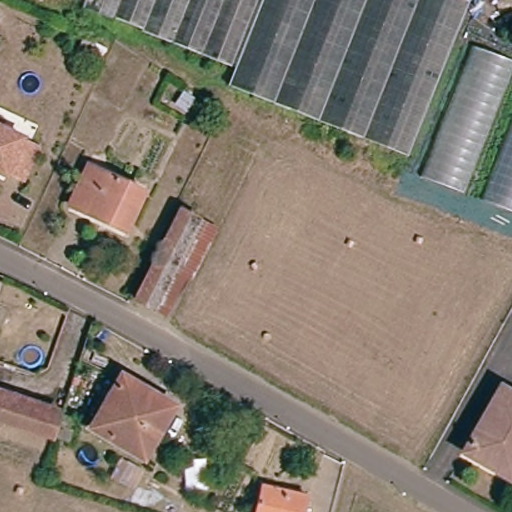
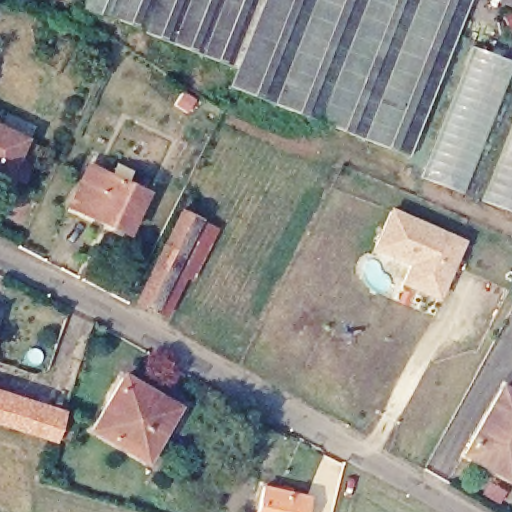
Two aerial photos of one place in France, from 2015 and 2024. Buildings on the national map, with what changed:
unchanged [(410,156),(397,151),(242,87),(233,83),(242,64),(91,2),(93,0),(475,0),(410,156)]
unchanged [(485,46),(512,57),(512,74),(464,190),(422,172),(443,122),(476,42),(485,46)]
unchanged [(0,171),(0,126),(26,139),(9,176),(0,171)]
unchanged [(487,197),(512,138),(512,207),(487,197)]
unchanged [(133,231),(79,205),(98,165),(152,192),(133,231)]
new [(400,285),(408,265),(371,250),(389,207),(464,240),(436,300),(400,285)]
unchanged [(140,300),(183,211),(201,220),(158,309),(140,300)]
unchanged [(214,226),(170,315),(158,309),(201,220),(214,226)]
unchanged [(147,457),(98,427),(127,378),(177,407),(147,457)]
unchanged [(61,436),(0,417),(0,388),(69,410),(61,436)]
unchanged [(468,452),(505,388),(512,392),(512,478),(468,452)]
unchanged [(262,512),(268,483),(309,492),(305,512),(262,512)]

